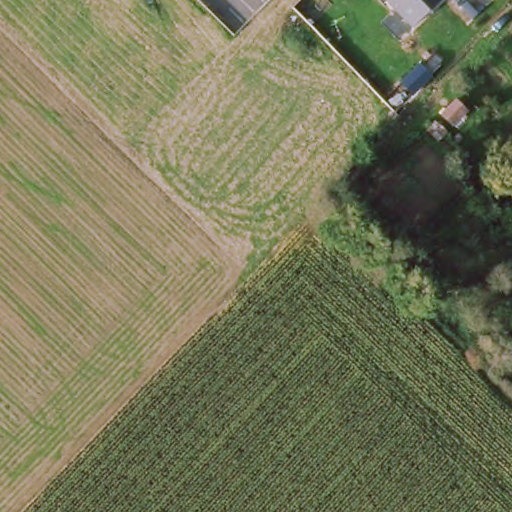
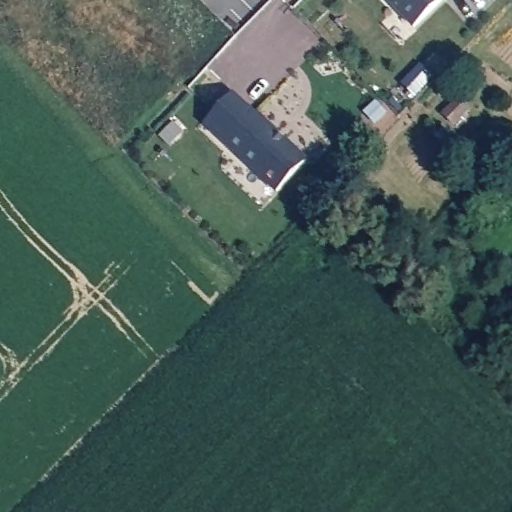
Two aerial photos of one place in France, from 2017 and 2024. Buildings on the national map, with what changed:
unchanged [(383,0),(441,0),(412,29),(383,0)]
new [(254,117),(276,137),(275,138),(280,143),(281,142),(304,164),(274,196),(202,127),(230,97),(252,118),(254,117)]
unchanged [(440,117),(455,104),(466,115),(451,130),(440,117)]
unchanged [(477,207),(486,199),(499,211),(490,220),(477,207)]

